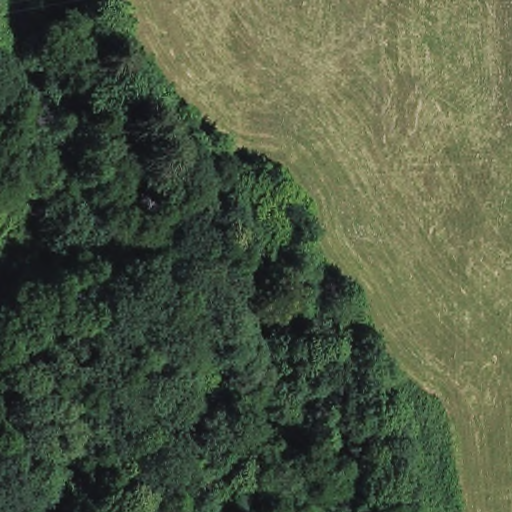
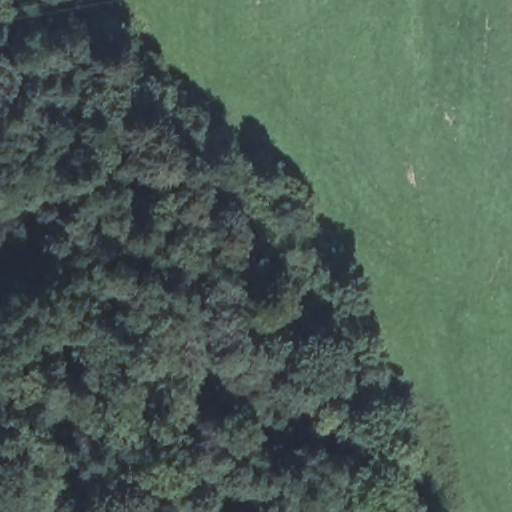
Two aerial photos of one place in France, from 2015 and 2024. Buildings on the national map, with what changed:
[]

